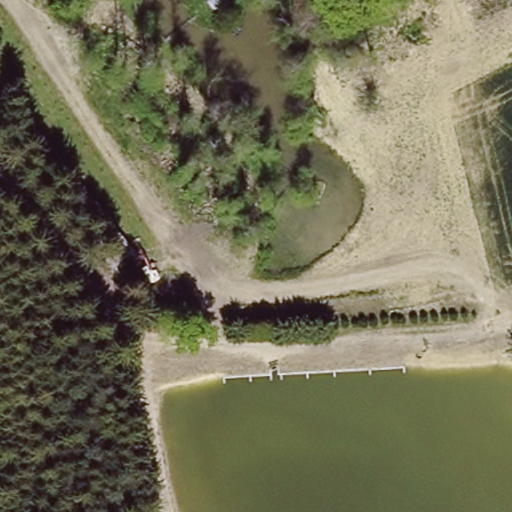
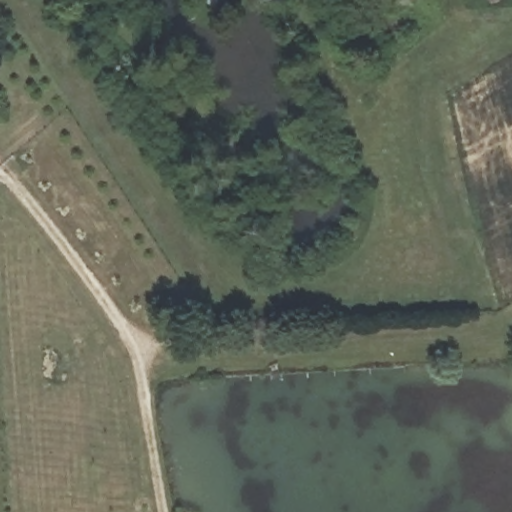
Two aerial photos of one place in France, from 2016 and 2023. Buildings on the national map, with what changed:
unchanged [(218,10),(212,9),(208,5),(208,0),(227,0),(227,2),(218,10)]

